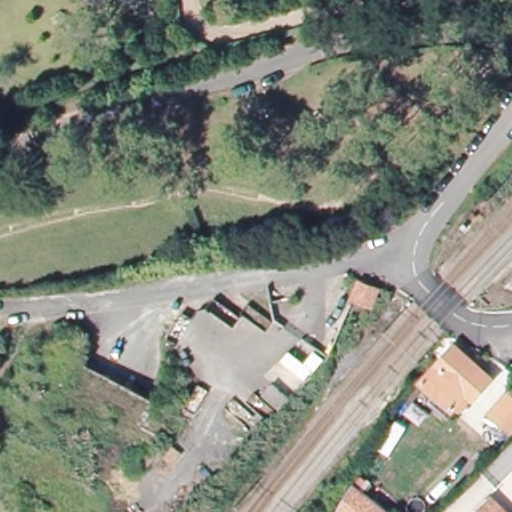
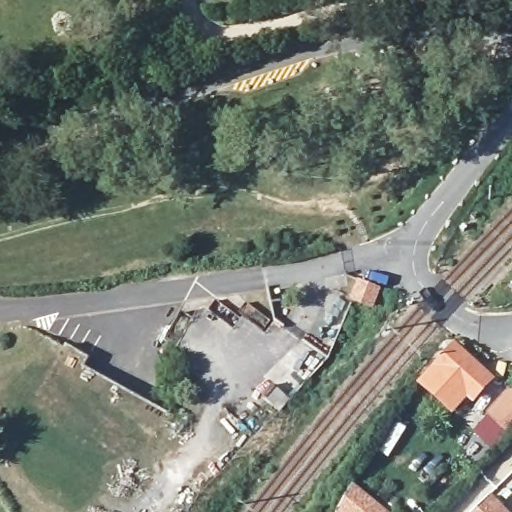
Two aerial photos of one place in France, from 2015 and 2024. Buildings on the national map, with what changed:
unchanged [(454,349),(490,381),(473,399),(467,394),(451,410),(422,382),(454,349)]
unchanged [(504,421),(491,409),(510,388),(512,390),(512,425),(510,427),(502,435),(496,429),(504,421)]
unchanged [(265,400),(275,389),(293,405),(283,417),(265,400)]
unchanged [(352,487),(385,512),(338,512),(352,487)]
unchanged [(490,499),(503,512),(478,512),(490,499)]

